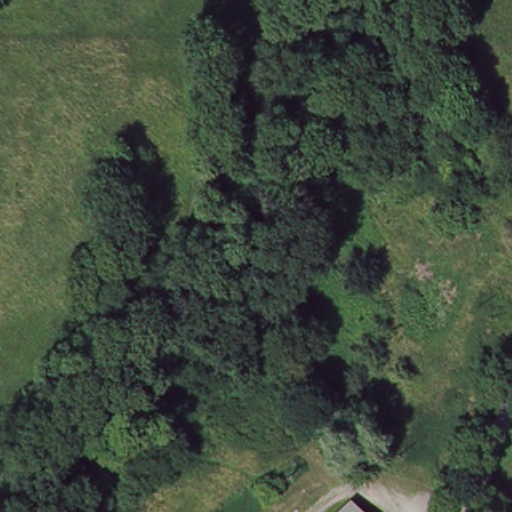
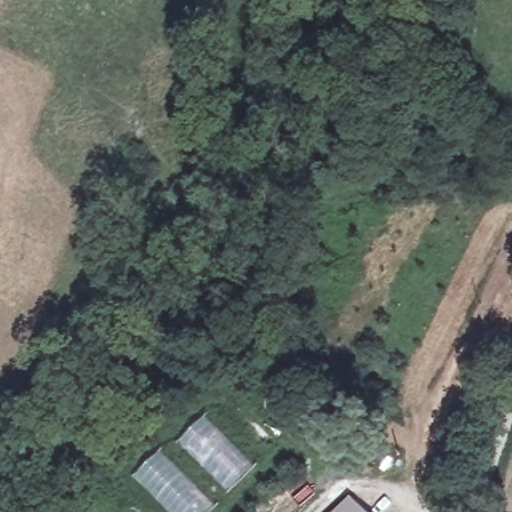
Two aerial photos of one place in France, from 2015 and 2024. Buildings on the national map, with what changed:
new [(205,419),(256,467),(231,491),(181,442),(205,419)]
new [(161,452),(217,507),(212,512),(173,512),(136,477),(161,452)]
new [(368,512),(336,512),(352,497),(368,512)]
new [(132,503),(141,512),(123,512),(132,503)]

